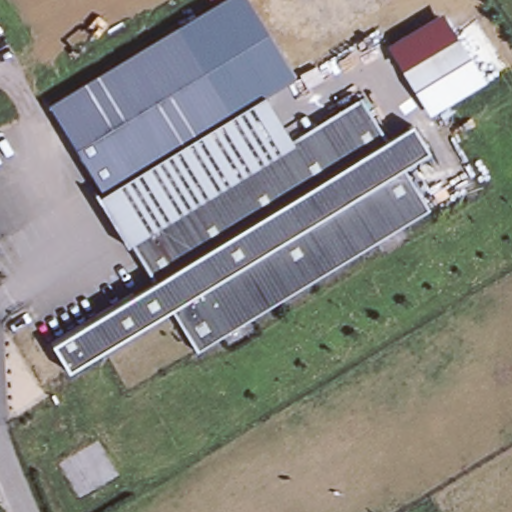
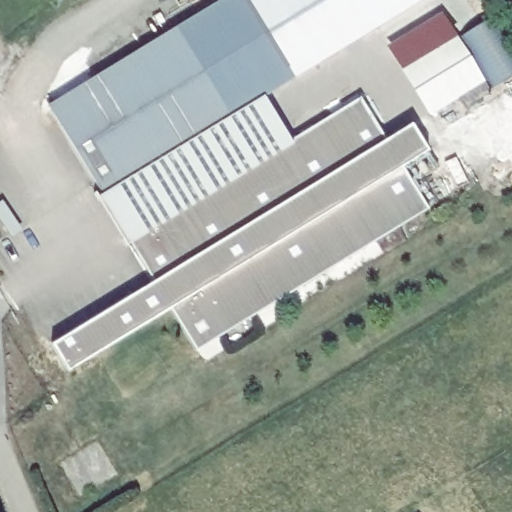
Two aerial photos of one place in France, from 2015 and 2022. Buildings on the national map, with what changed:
unchanged [(104,197),(232,119),(179,32),(229,0),(247,0),(299,81),(267,102),(289,137),(130,234),(104,197)]
new [(299,81),(247,0),(433,0),(299,81)]
unchanged [(487,82),(429,117),(399,65),(454,29),(487,82)]
unchanged [(50,111),(179,32),(232,119),(104,197),(50,111)]
unchanged [(130,234),(289,137),(362,92),(389,134),(155,276),(130,234)]
unchanged [(70,365),(53,338),(155,276),(389,134),(414,119),(430,145),(404,161),(172,303),(70,365)]
unchanged [(172,303),(404,161),(430,203),(198,345),(172,303)]

